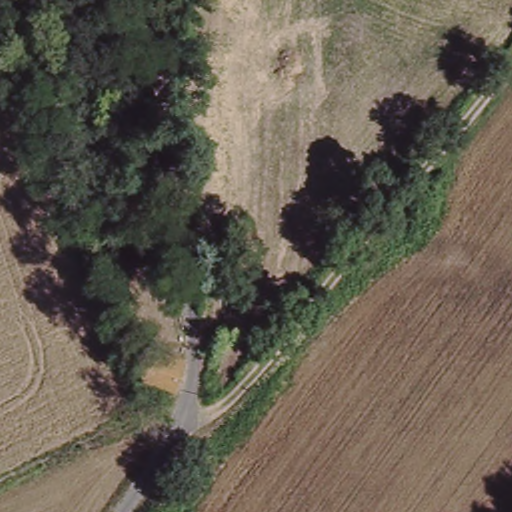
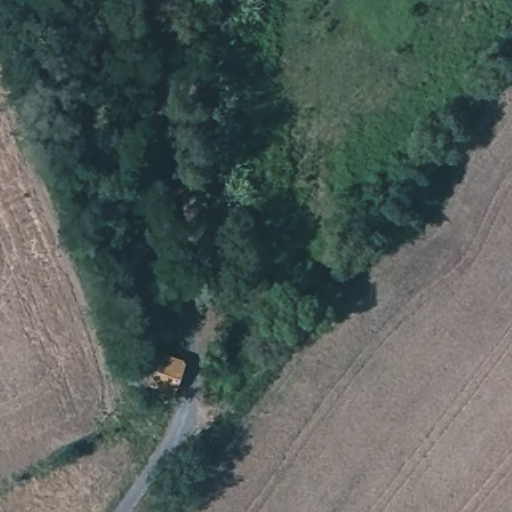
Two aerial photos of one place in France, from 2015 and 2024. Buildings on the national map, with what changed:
unchanged [(171,385),(129,367),(140,342),(184,360),(171,385)]

